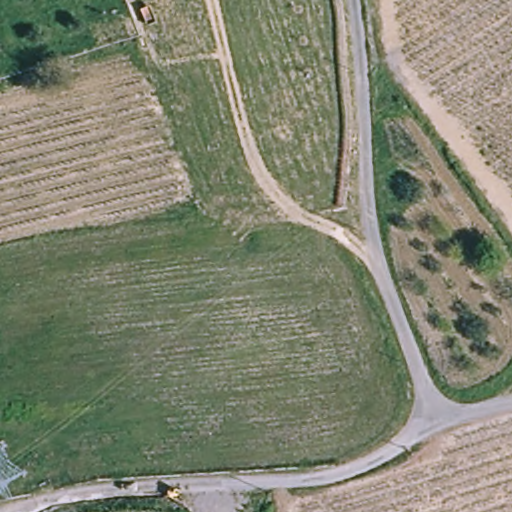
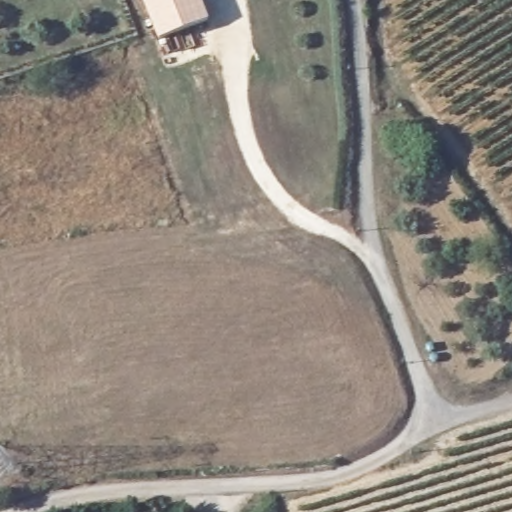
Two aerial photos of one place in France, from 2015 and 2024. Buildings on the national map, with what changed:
new [(204,25),(156,45),(137,0),(193,0),(204,25)]

